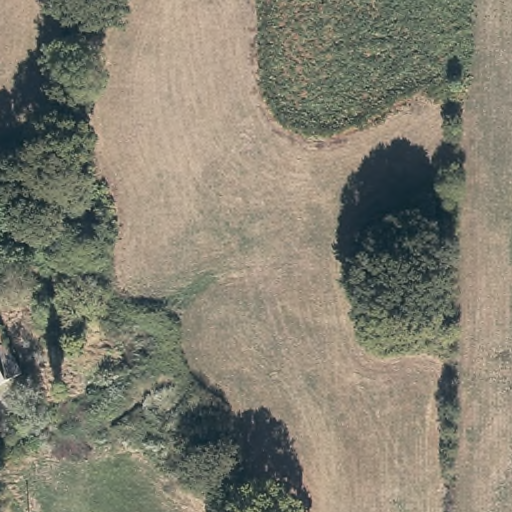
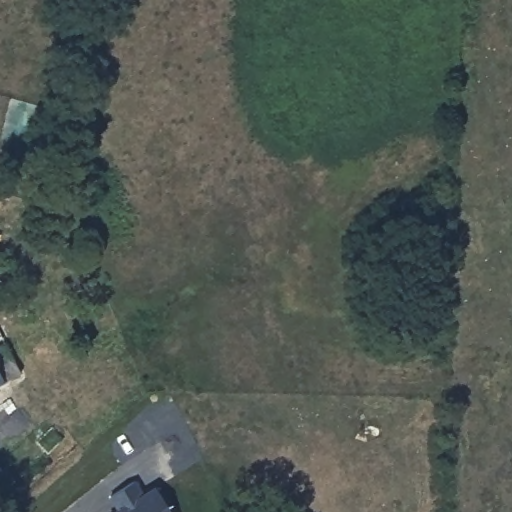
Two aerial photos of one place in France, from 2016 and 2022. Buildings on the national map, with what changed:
unchanged [(0,388),(0,338),(20,377),(0,388)]
new [(108,496),(136,480),(143,492),(155,486),(171,512),(113,512),(118,509),(108,496)]

